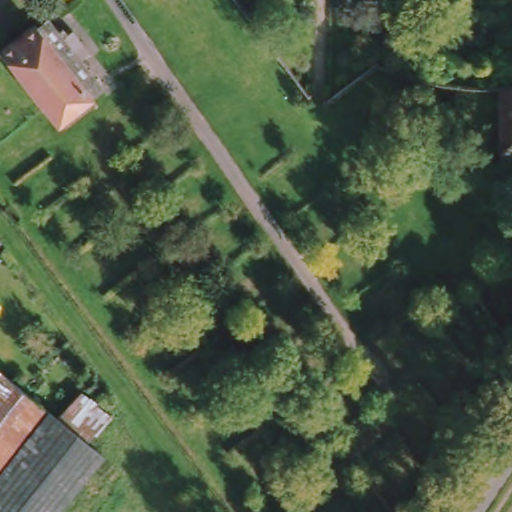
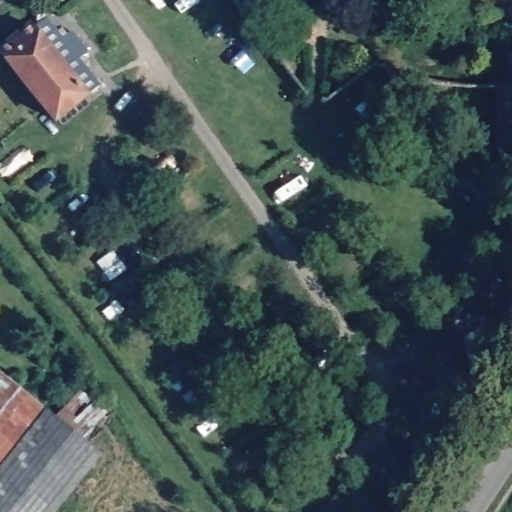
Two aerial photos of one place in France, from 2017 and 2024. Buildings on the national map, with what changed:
unchanged [(52,34),(57,40),(63,36),(78,56),(73,60),(79,68),(74,71),(91,91),(46,126),(0,69),(0,48),(23,30),(25,25),(26,21),(25,16),(29,13),(48,38),(52,34)]
unchanged [(512,78),(512,156),(499,156),(494,140),(492,78),(512,78)]
unchanged [(57,418),(0,484),(0,372),(57,418)]
unchanged [(123,427),(101,455),(57,418),(79,391),(123,427)]
unchanged [(55,512),(0,512),(0,484),(57,418),(101,455),(55,512)]

